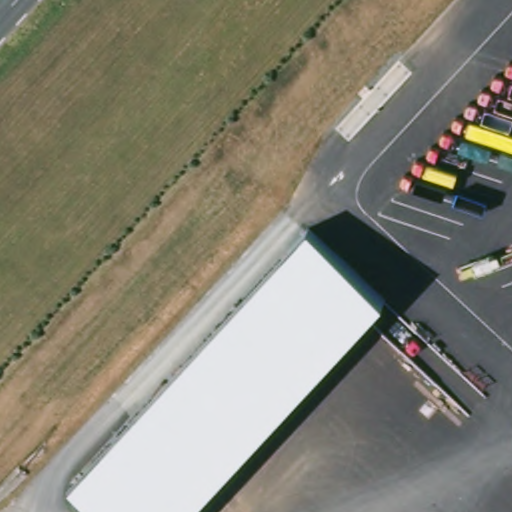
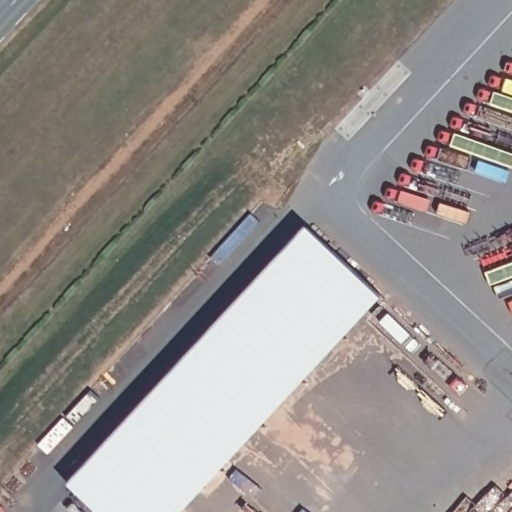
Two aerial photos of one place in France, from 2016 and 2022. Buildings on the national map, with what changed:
unchanged [(98,512),(71,487),(309,229),(386,301),(190,512),(98,512)]

